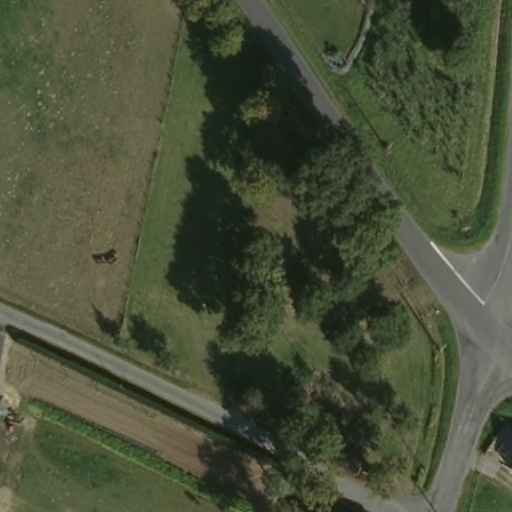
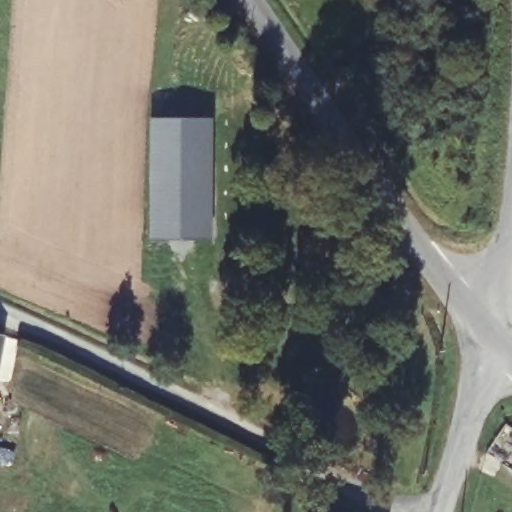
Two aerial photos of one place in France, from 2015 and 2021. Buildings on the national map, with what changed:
new [(150,115),(209,116),(207,238),(147,238),(150,115)]
unchanged [(5,331),(0,358),(0,331),(5,331)]
unchanged [(512,464),(512,467),(511,466),(512,464)]

